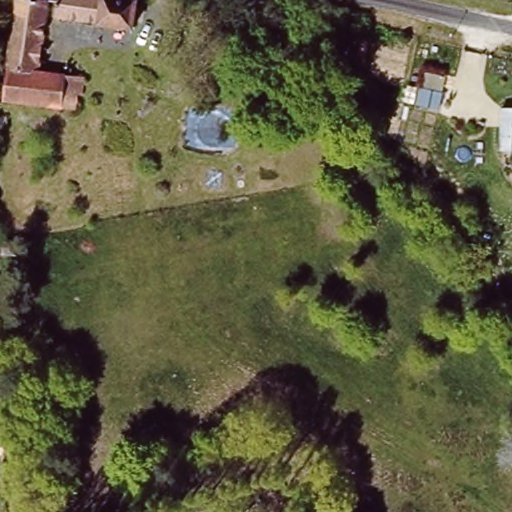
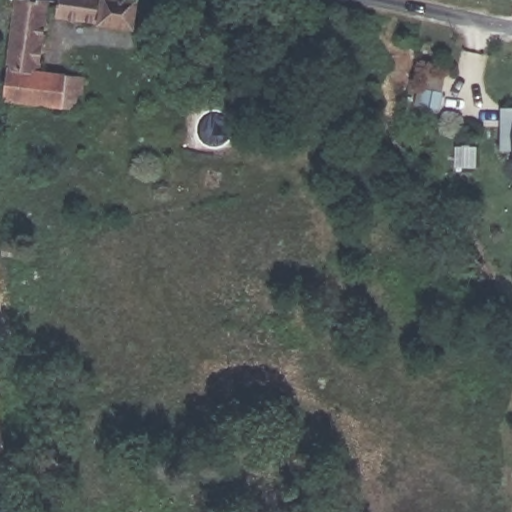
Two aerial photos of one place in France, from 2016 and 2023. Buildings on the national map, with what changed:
unchanged [(37,0),(44,8),(35,70),(82,79),(80,93),(73,92),(70,109),(0,96),(0,80),(13,0),(37,0)]
unchanged [(130,31),(55,13),(58,0),(133,0),(140,1),(130,31)]
unchanged [(501,150),(500,104),(512,104),(512,150),(501,150)]

